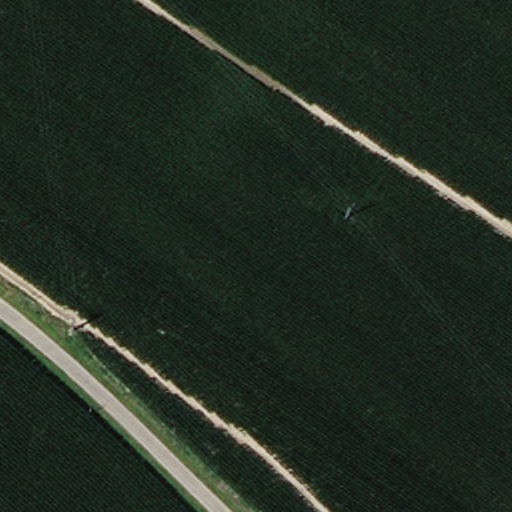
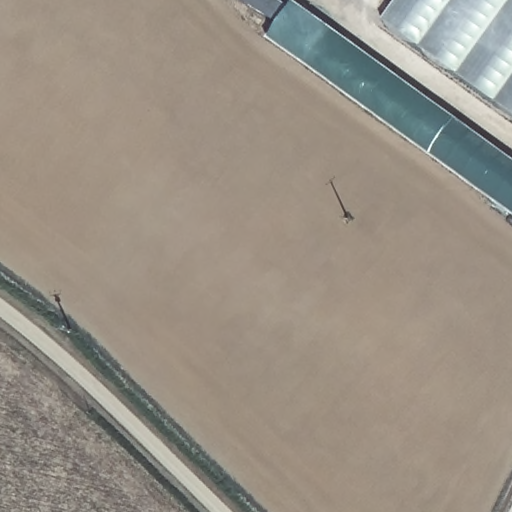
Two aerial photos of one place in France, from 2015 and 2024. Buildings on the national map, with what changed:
new [(289,5),(276,22),(243,0),(281,0),(289,5)]
new [(267,35),(293,0),(297,0),(512,157),(512,213),(267,35)]
new [(383,17),(395,0),(512,0),(512,113),(383,17)]
demolished [(0,450),(0,390),(21,397),(0,450)]

